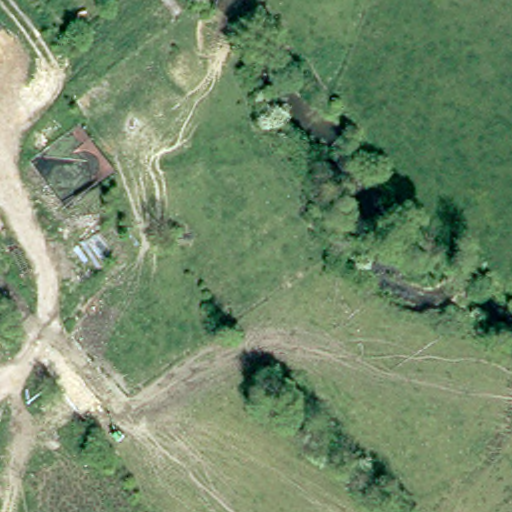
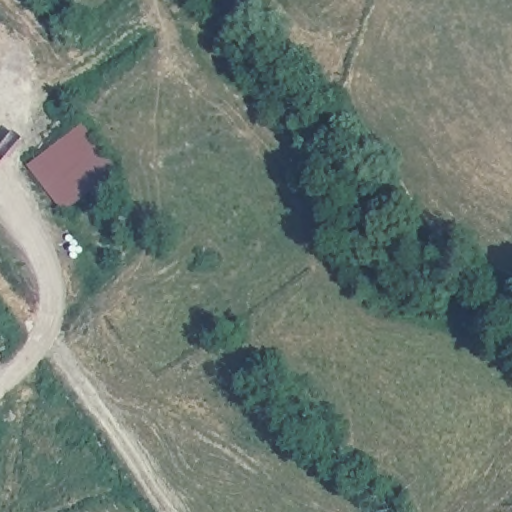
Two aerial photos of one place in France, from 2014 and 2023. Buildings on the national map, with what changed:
unchanged [(0,42),(0,40),(1,41),(0,42)]
new [(117,169),(64,214),(27,167),(80,121),(117,169)]

